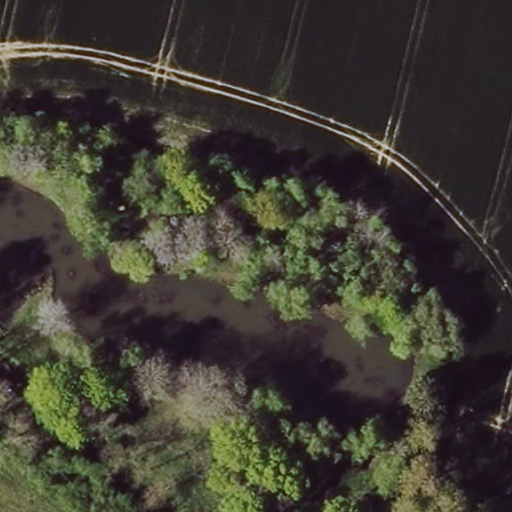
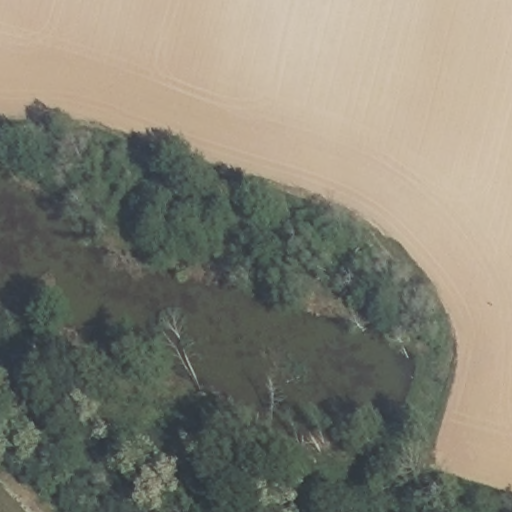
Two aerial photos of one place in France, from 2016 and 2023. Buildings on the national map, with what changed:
unchanged [(47,408),(66,427),(44,452),(21,432),(47,408)]

